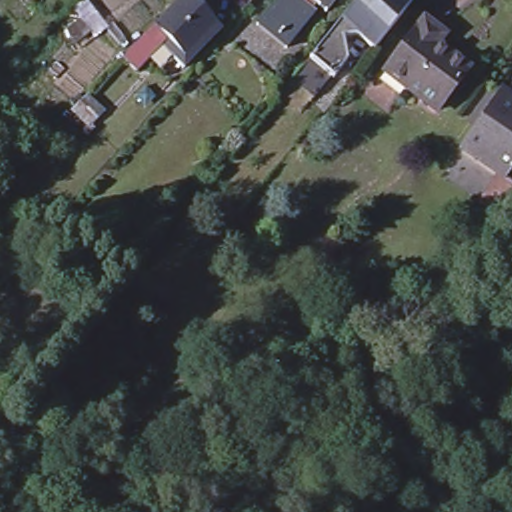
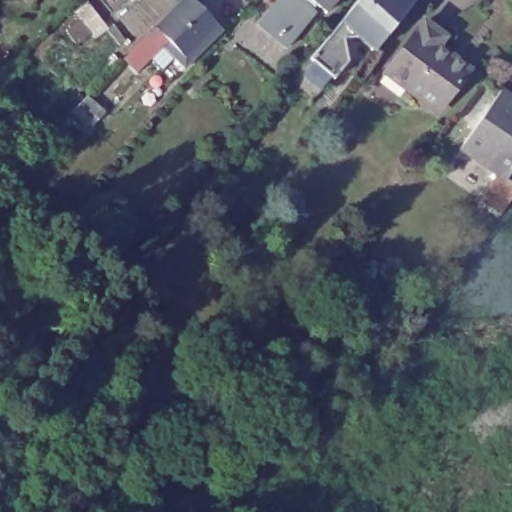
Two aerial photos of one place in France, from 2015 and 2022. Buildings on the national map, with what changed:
unchanged [(176,0),(180,0),(212,32),(178,66),(155,45),(143,58),(131,46),(176,0)]
unchanged [(277,5),(282,0),(328,0),(308,22),(300,14),(295,20),(298,22),(274,52),(265,45),(245,29),(269,0),(271,0),(277,5)]
unchanged [(357,0),(413,0),(376,47),(360,32),(345,34),(350,57),(336,74),(312,55),(357,0)]
unchanged [(395,86),(380,74),(383,70),(388,75),(393,67),(427,24),(437,32),(447,39),(439,48),(450,56),(452,56),(460,62),(471,71),(440,112),(428,104),(408,89),(405,93),(395,86)]
unchanged [(478,200),(498,172),(487,165),(463,149),(459,145),(498,90),(503,94),(512,100),(512,166),(504,177),(512,183),(512,191),(497,213),(478,200)]
unchanged [(85,98),(102,113),(89,127),(72,111),(85,98)]

